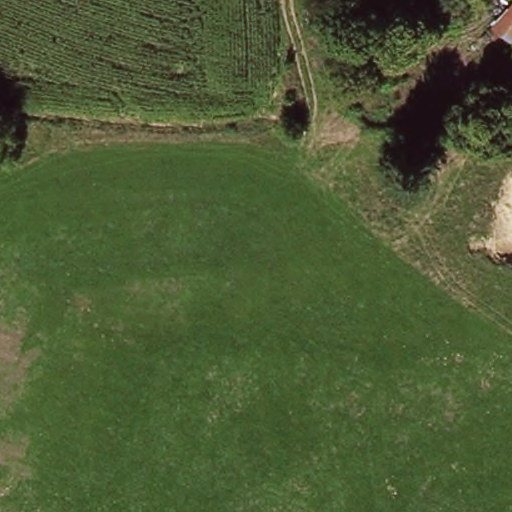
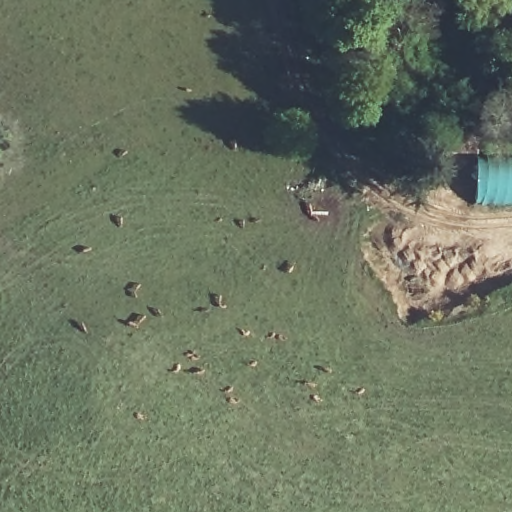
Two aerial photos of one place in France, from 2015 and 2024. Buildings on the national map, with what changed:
unchanged [(510,52),(488,34),(512,8),(512,50),(510,52)]
new [(473,206),(472,154),(512,154),(512,205),(473,206)]

